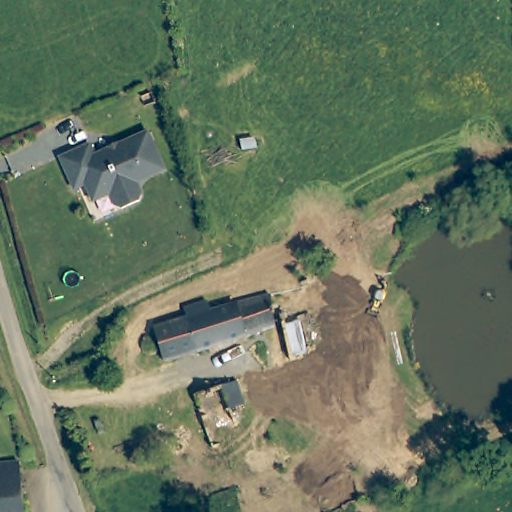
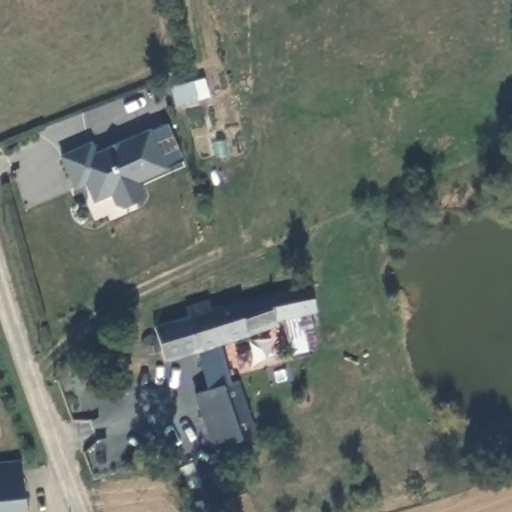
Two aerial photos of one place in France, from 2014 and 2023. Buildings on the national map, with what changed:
unchanged [(90,144),(97,160),(119,151),(116,145),(149,131),(165,169),(138,181),(144,194),(142,200),(124,208),(118,207),(112,192),(95,200),(87,183),(77,187),(62,156),(90,144)]
unchanged [(311,284),(317,313),(298,317),(309,356),(290,358),(281,319),(274,320),(266,294),(311,284)]
unchanged [(140,338),(143,335),(150,332),(149,327),(180,317),(180,318),(183,317),(180,308),(202,301),(205,310),(266,292),(276,325),(246,335),(198,350),(160,363),(158,355),(147,355),(145,354),(142,352),(141,350),(140,348),(140,346),(139,343),(140,340),(140,338)]
demolished [(231,378),(241,407),(228,411),(218,383),(231,378)]
new [(235,380),(255,438),(212,452),(193,395),(235,380)]
unchanged [(16,460),(21,512),(0,512),(0,462),(16,460)]

